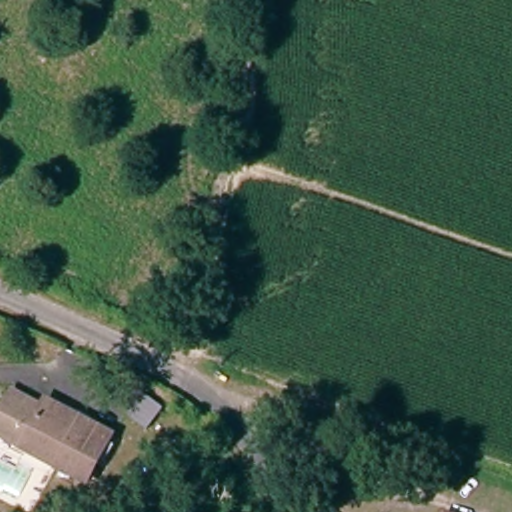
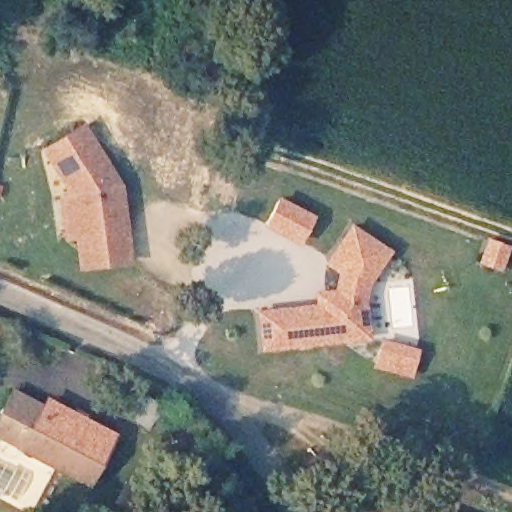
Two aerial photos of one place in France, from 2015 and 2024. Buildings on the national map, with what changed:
new [(79,270),(74,240),(66,240),(60,192),(67,191),(42,150),(84,123),(124,188),(132,265),(79,270)]
new [(263,226),(279,195),(316,215),(300,245),(263,226)]
new [(260,350),(257,310),(316,302),(315,292),(334,290),(337,271),(325,264),(351,224),(392,252),(370,283),(367,295),(372,338),(260,350)]
new [(371,367),(380,338),(420,349),(411,378),(371,367)]
unchanged [(49,414),(53,407),(115,438),(93,481),(0,435),(0,432),(17,398),(49,414)]

